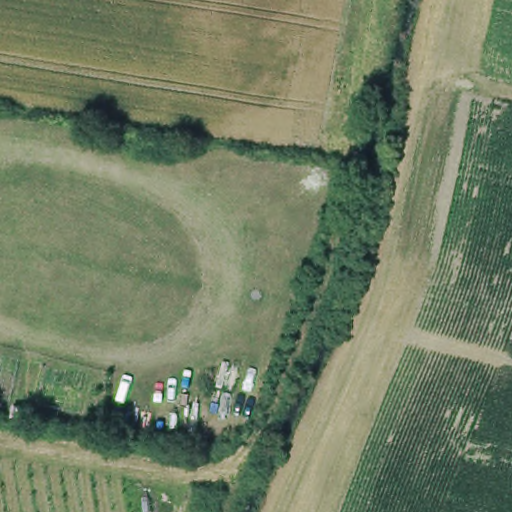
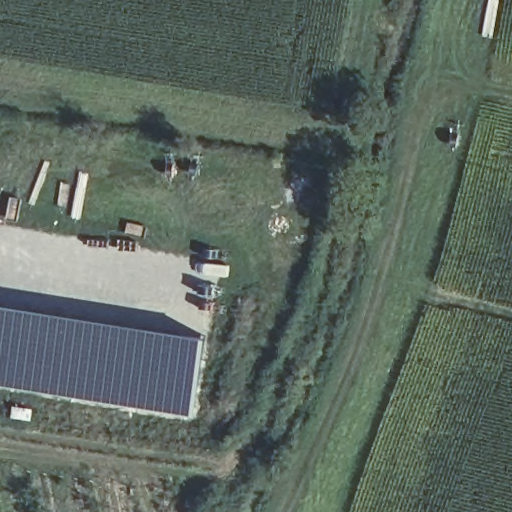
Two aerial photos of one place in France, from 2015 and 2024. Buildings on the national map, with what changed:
new [(209,337),(195,417),(0,383),(0,303),(209,337)]

